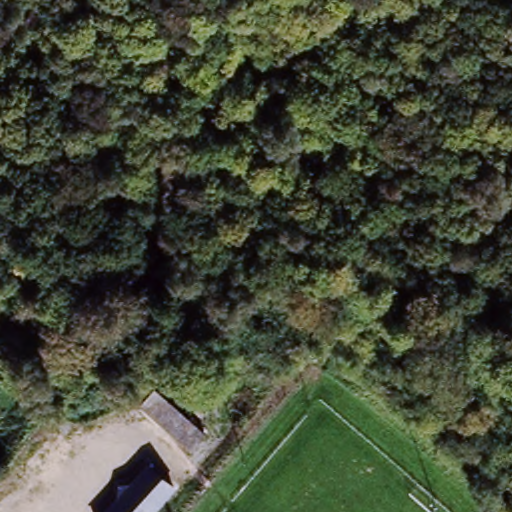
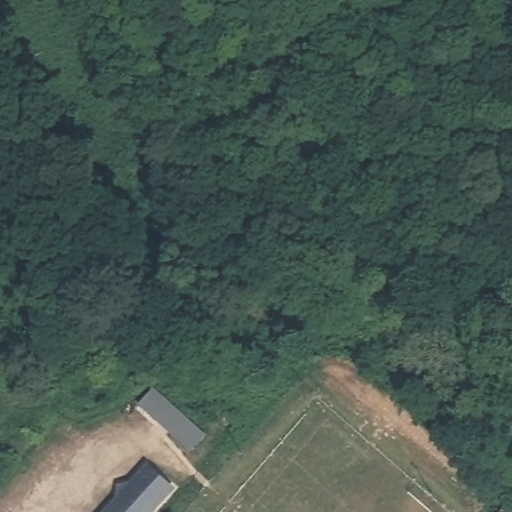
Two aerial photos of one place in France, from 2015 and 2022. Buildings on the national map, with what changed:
unchanged [(196,407),(206,417),(195,428),(204,435),(191,451),(137,405),(152,389),(185,418),(196,407)]
unchanged [(176,494),(159,512),(102,512),(146,466),(176,494)]
unchanged [(482,495),(501,512),(473,512),(470,510),(482,495)]

